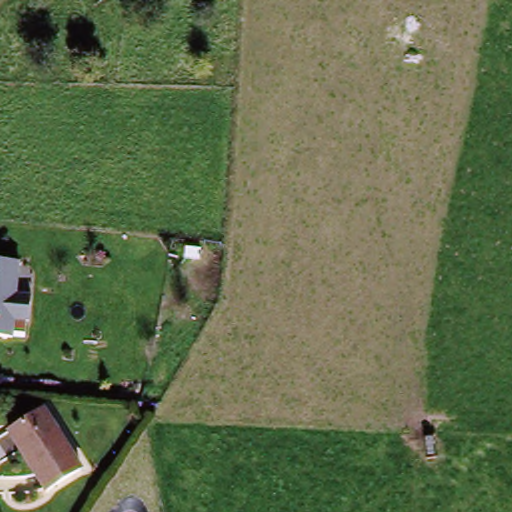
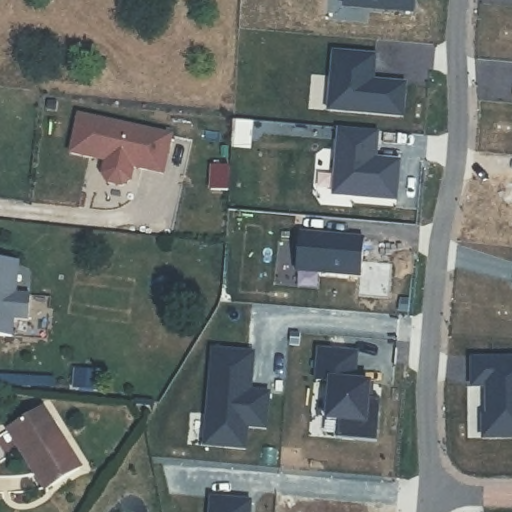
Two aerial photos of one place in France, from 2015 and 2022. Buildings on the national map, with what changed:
new [(419,14),(376,10),(376,8),(351,5),(351,0),(420,0),(419,14)]
new [(383,56),(381,74),(376,74),(376,80),(413,84),(410,117),(336,110),(341,52),(383,56)]
new [(81,120),(176,137),(169,177),(138,171),(136,185),(127,191),(113,188),(107,180),(109,166),(107,166),(107,163),(99,162),(99,164),(73,160),(81,120)]
new [(387,130),(385,148),(380,147),(379,157),(407,159),(404,199),(341,192),(347,126),(387,130)]
new [(373,235),(369,274),(303,267),(308,228),(373,235)]
unchanged [(9,314),(24,314),(24,337),(8,336),(6,354),(0,354),(0,265),(12,265),(9,314)]
new [(211,348),(255,350),(254,377),(250,377),(250,386),(253,390),(253,392),(274,393),(271,431),(251,430),(250,454),(227,452),(228,441),(206,440),(211,348)]
new [(497,412),(500,412),(501,383),(486,383),(486,355),(512,355),(512,434),(497,434),(497,412)]
new [(399,404),(370,401),(369,416),(354,415),(353,428),(311,425),(314,384),(332,385),(332,375),(371,378),(372,364),(401,366),(399,404)]
unchanged [(83,464),(54,491),(9,438),(38,412),(83,464)]
new [(258,502),(257,512),(218,512),(219,500),(258,502)]

